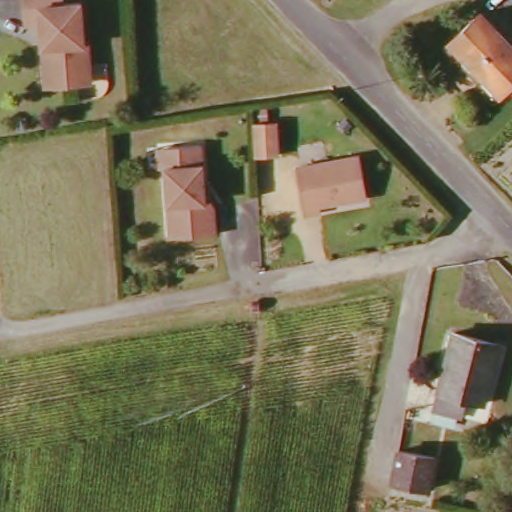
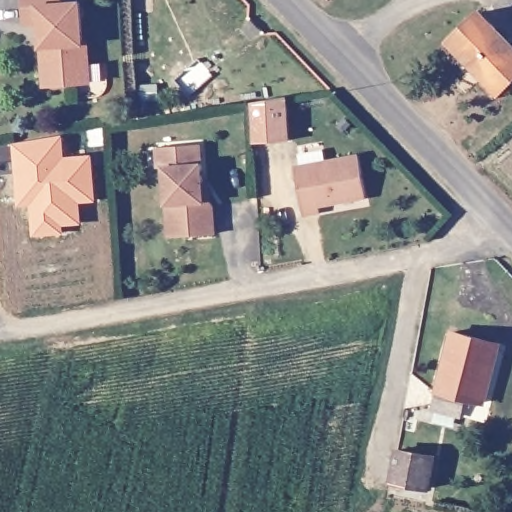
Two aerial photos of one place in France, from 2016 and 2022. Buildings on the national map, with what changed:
unchanged [(44,27),(31,28),(31,0),(66,0),(66,7),(83,5),(85,44),(92,44),(93,67),(81,68),(83,88),(49,90),(44,27)]
unchanged [(487,12),(512,38),(512,87),(499,98),(451,47),(487,12)]
new [(59,234),(31,237),(28,205),(20,206),(16,207),(14,176),(11,144),(60,136),(61,157),(89,156),(91,202),(75,203),(78,225),(58,226),(59,234)]
unchanged [(217,202),(220,236),(173,238),(170,171),(162,170),(163,150),(174,150),(207,148),(209,186),(216,185),(217,202)]
unchanged [(299,165),(364,156),(369,199),(324,205),(324,212),(305,214),(299,165)]
unchanged [(489,402),(469,396),(464,414),(439,408),(458,331),(504,344),(489,402)]
unchanged [(433,456),(429,488),(393,482),(398,449),(433,456)]

